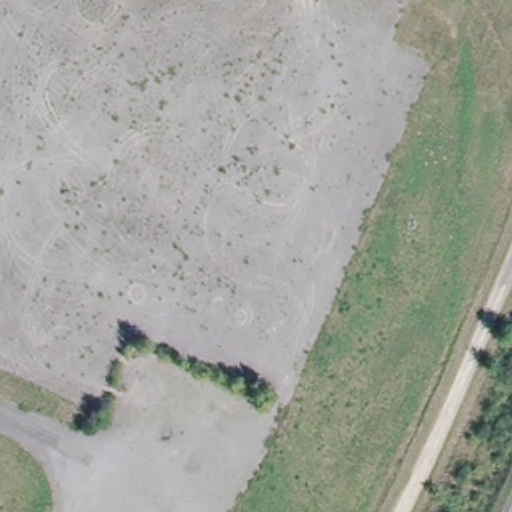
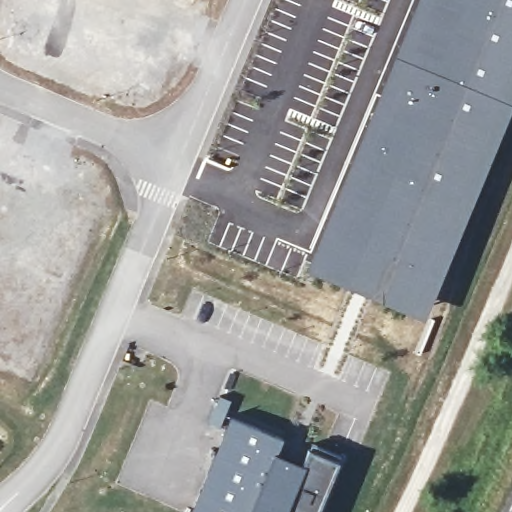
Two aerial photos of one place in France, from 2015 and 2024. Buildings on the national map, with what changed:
new [(403,20),(412,0),(512,0),(512,107),(425,313),(419,311),(415,318),(355,287),(352,292),(305,271),(321,221),(403,20)]
new [(221,425),(210,421),(220,393),(232,398),(221,425)]
new [(319,512),(194,512),(232,414),(285,435),(278,451),(303,461),(310,445),(341,456),(319,512)]

